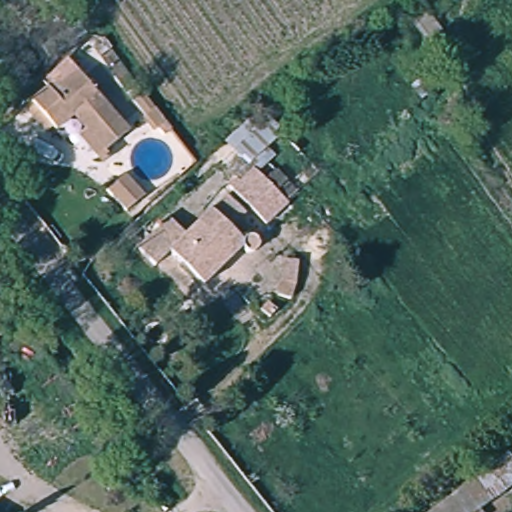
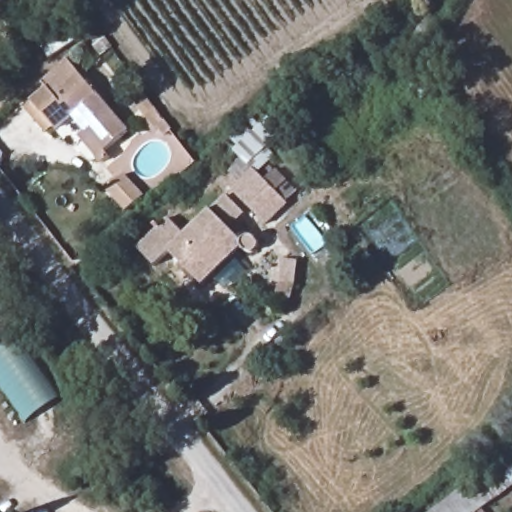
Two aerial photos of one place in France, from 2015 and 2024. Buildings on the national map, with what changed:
unchanged [(106,162),(83,136),(90,132),(75,116),(58,132),(55,127),(48,134),(26,108),(49,90),(74,67),(80,74),(130,132),(107,152),(112,158),(106,162)]
unchanged [(164,137),(157,130),(154,132),(144,117),(130,101),(141,94),(154,111),(171,132),(164,137)]
unchanged [(224,182),(231,177),(208,154),(222,137),(230,148),(268,114),(285,131),(298,124),(311,145),(287,162),(275,152),(268,159),(294,191),(265,220),(224,182)]
unchanged [(129,212),(109,190),(127,176),(147,197),(129,212)]
unchanged [(207,283),(174,250),(157,265),(148,254),(141,255),(139,253),(140,247),(170,218),(185,232),(211,208),(245,246),(207,283)]
new [(21,324),(0,339),(0,295),(21,324)]
new [(18,337),(61,398),(27,423),(0,384),(0,349),(18,337)]
unchanged [(493,465),(512,487),(512,489),(483,512),(436,512),(493,465)]

